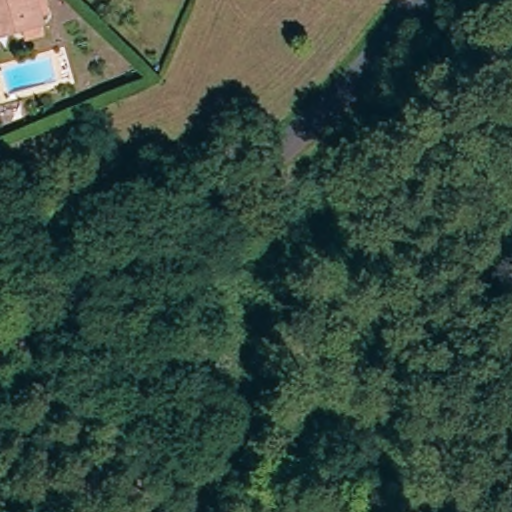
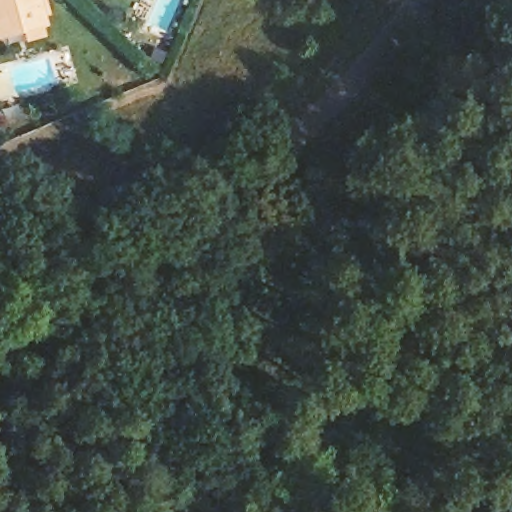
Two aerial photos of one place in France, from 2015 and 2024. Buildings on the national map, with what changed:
unchanged [(0,38),(0,0),(37,0),(42,19),(44,26),(14,34),(0,38)]

